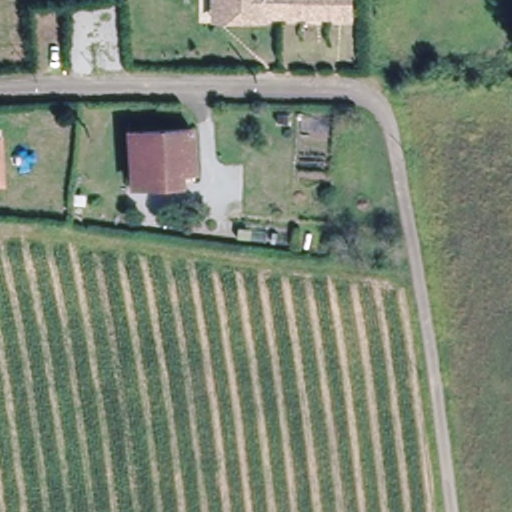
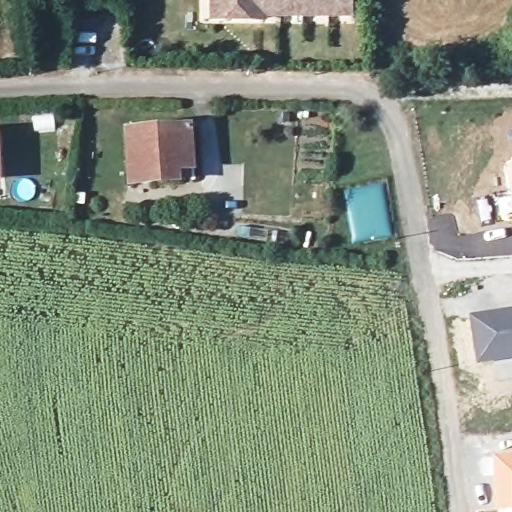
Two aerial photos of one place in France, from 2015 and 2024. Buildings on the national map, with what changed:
unchanged [(220,0),(353,0),(353,19),(270,17),(268,21),(234,19),(221,19),(220,0)]
unchanged [(197,167),(175,169),(176,181),(136,186),(131,133),(194,127),(197,167)]
new [(512,196),(505,164),(512,163),(512,196)]
new [(512,360),(477,365),(469,312),(512,306),(512,360)]
new [(512,509),(496,509),(493,453),(512,452),(512,509)]

